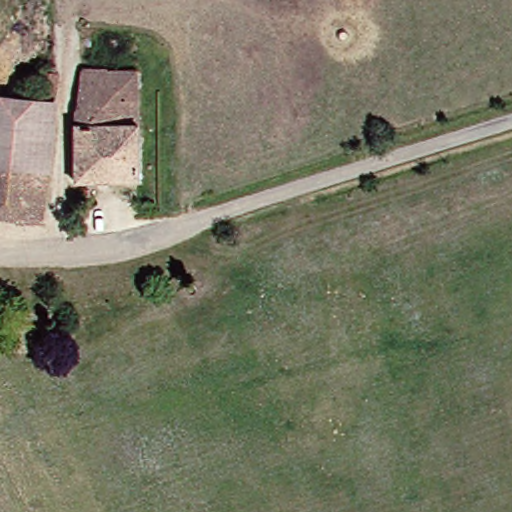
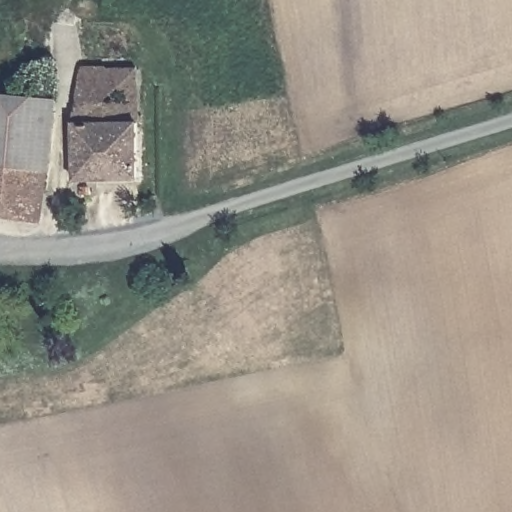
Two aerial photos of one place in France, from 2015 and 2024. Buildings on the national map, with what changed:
unchanged [(131,69),(125,177),(64,177),(70,115),(80,70),(131,69)]
unchanged [(15,99),(19,85),(33,85),(34,73),(56,74),(35,223),(13,221),(0,220),(0,97),(15,99)]

